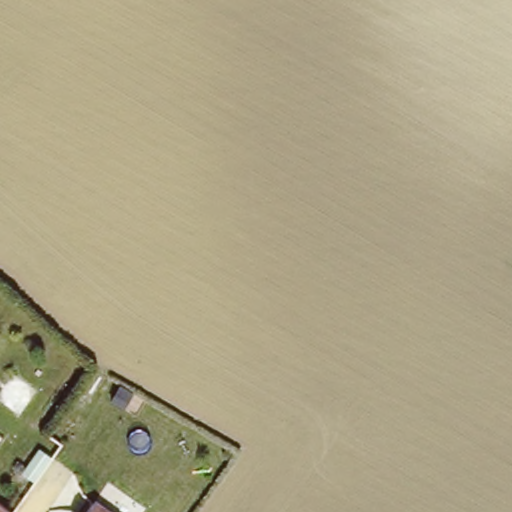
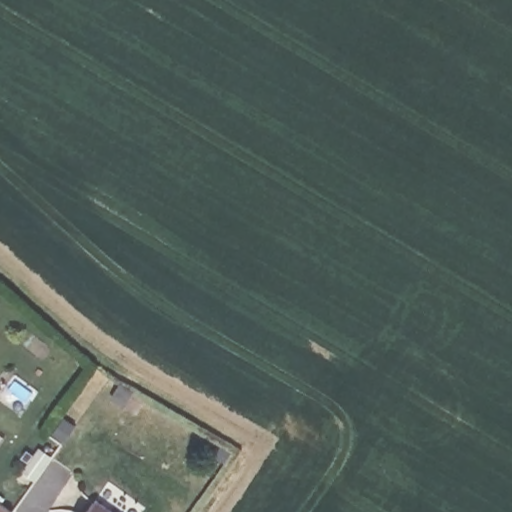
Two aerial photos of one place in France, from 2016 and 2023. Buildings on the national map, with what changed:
unchanged [(117,512),(87,512),(97,498),(117,512)]
unchanged [(12,512),(0,512),(0,502),(12,512)]

